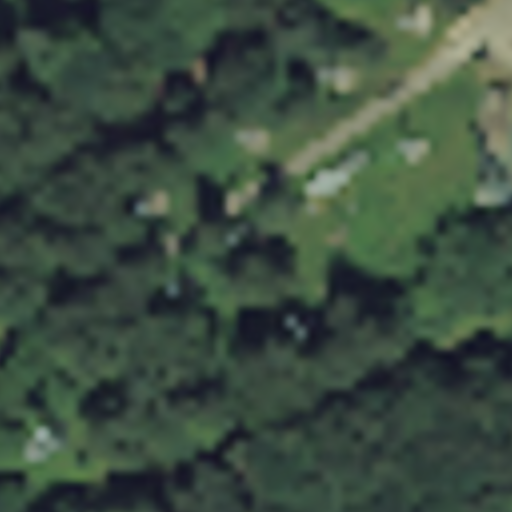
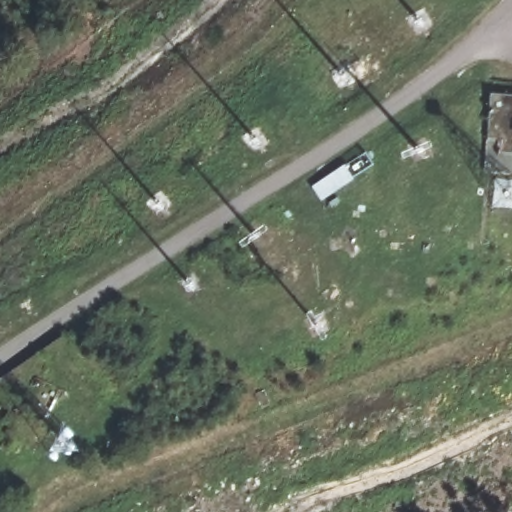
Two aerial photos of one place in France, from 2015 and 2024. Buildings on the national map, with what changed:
unchanged [(493,91),(512,91),(512,173),(489,171),(493,91)]
unchanged [(313,183),(369,146),(380,163),(324,201),(313,183)]

